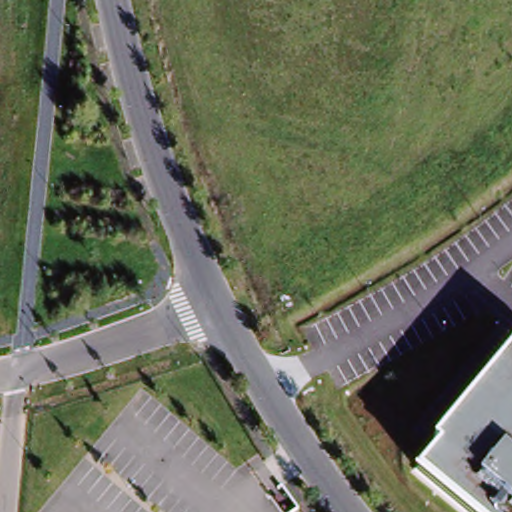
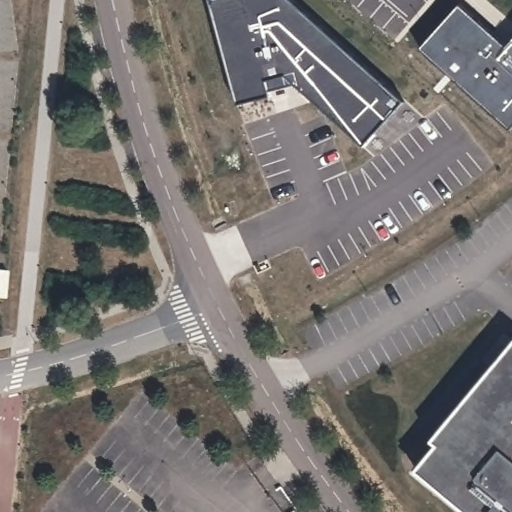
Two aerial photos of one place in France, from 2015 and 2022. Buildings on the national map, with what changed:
new [(271,93),(273,98),(240,108),(210,1),(216,0),(290,0),(405,103),(365,147),(297,86),(271,93)]
unchanged [(440,444),(434,438),(512,346),(512,512),(467,512),(416,470),(440,444)]

